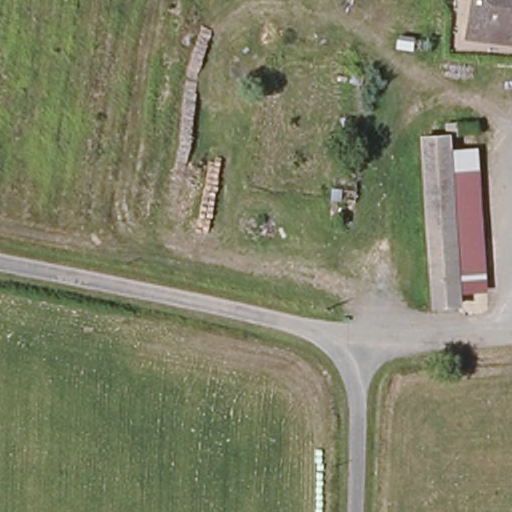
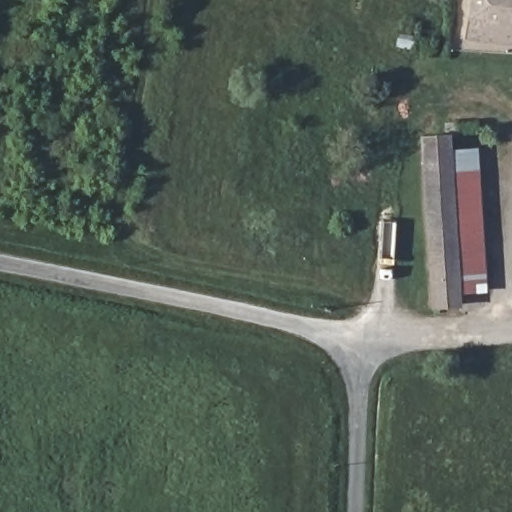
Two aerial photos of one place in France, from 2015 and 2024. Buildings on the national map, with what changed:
unchanged [(475,0),(512,0),(512,38),(469,34),(475,0)]
unchanged [(461,305),(433,309),(423,142),(451,141),(461,305)]
unchanged [(475,145),(486,289),(464,293),(455,147),(475,145)]

